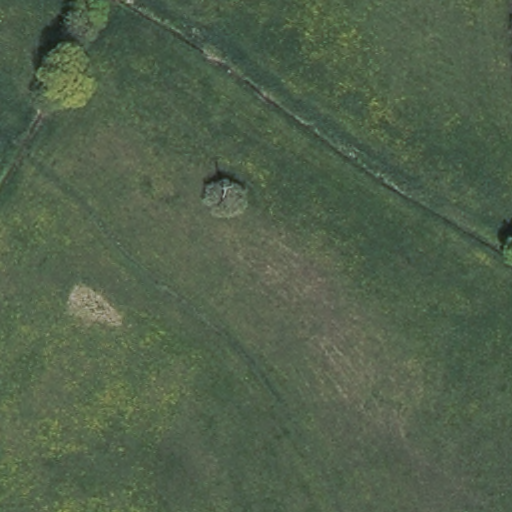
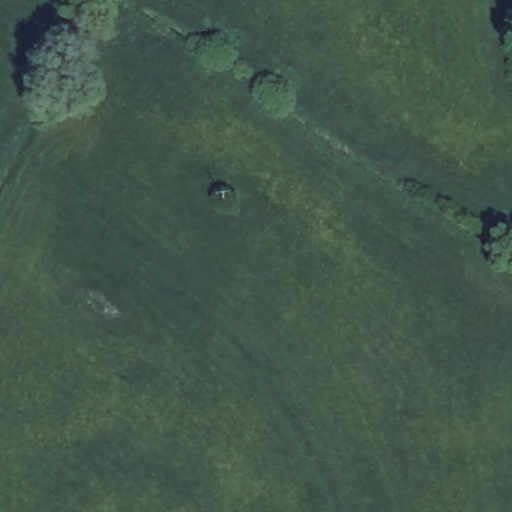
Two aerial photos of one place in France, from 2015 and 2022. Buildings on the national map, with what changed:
[]

